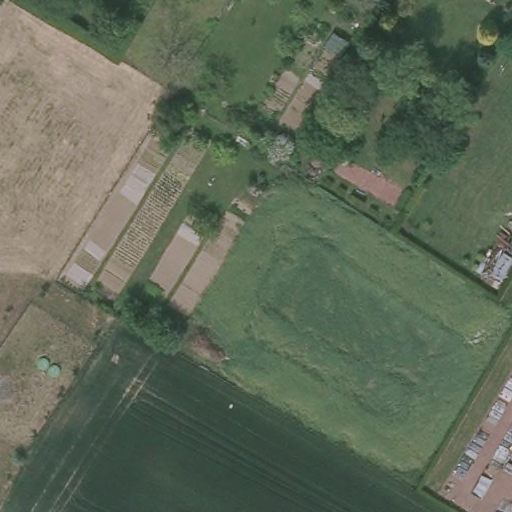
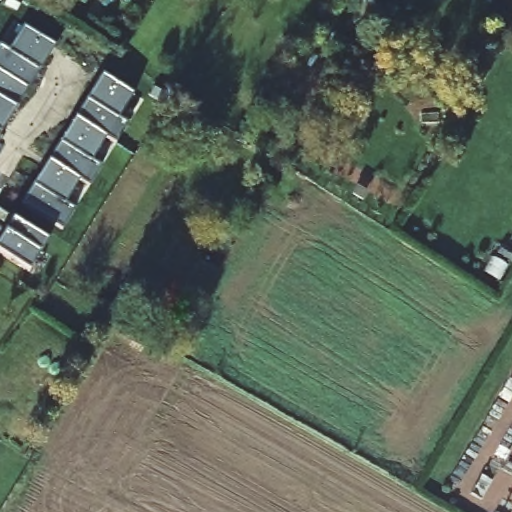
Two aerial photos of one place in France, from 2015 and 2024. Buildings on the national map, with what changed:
new [(0,131),(0,46),(0,45),(10,50),(25,27),(54,46),(1,131),(0,131)]
new [(120,117),(129,123),(116,143),(107,137),(92,162),(101,168),(89,186),(80,180),(65,204),(75,210),(62,229),(23,203),(103,76),(135,95),(120,117)]
new [(28,270),(0,253),(0,240),(4,233),(0,231),(0,212),(13,219),(47,240),(28,270)]

